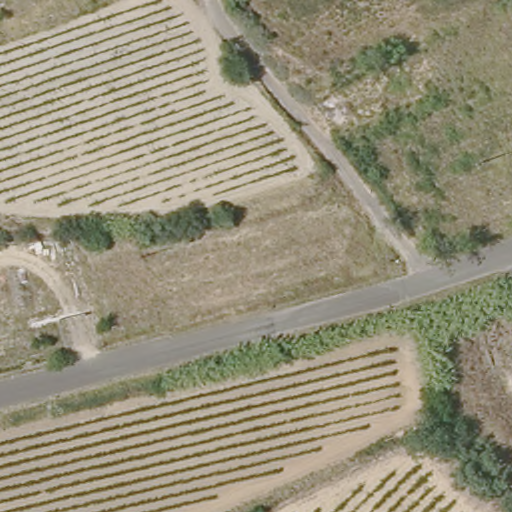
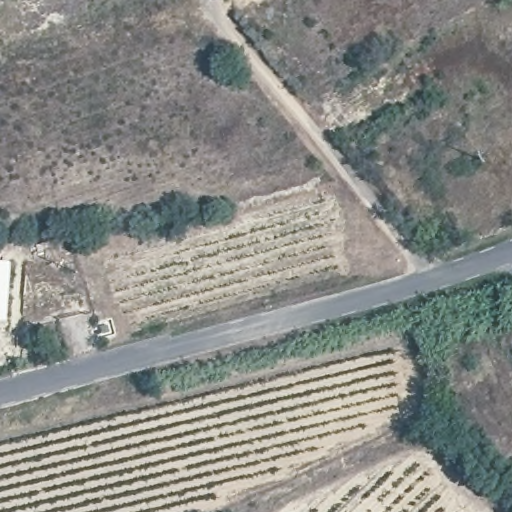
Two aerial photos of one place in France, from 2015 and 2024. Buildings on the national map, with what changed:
new [(12,259),(8,323),(0,322),(0,258),(12,259)]

